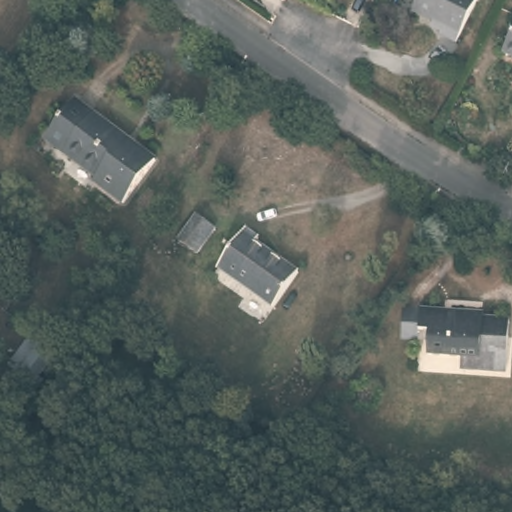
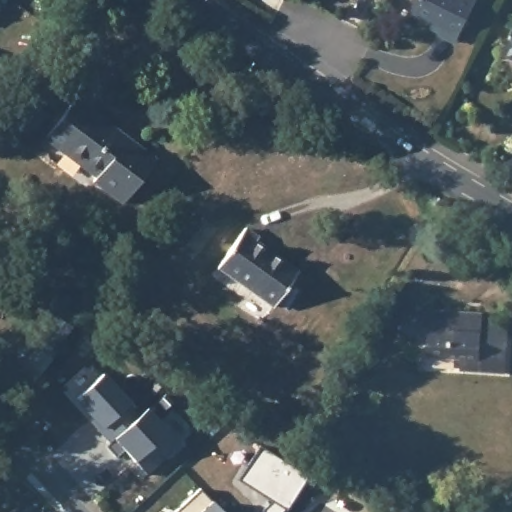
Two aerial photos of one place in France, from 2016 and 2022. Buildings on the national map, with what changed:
unchanged [(454,43),(437,34),(441,25),(411,9),(416,0),(476,0),(477,0),(454,43)]
unchanged [(498,51),(512,27),(512,59),(498,51)]
unchanged [(160,160),(127,204),(95,181),(97,177),(44,140),(75,99),(160,160)]
unchanged [(198,256),(177,241),(196,215),(216,228),(198,256)]
unchanged [(273,306),(217,268),(242,229),(255,239),(252,243),(295,269),(273,306)]
unchanged [(480,313),(480,320),(507,324),(498,378),(457,369),(460,355),(425,350),(427,326),(418,325),(417,331),(402,328),(407,301),(422,304),(422,302),(480,313)]
unchanged [(53,359),(36,383),(16,371),(31,351),(25,346),(36,331),(42,337),(57,316),(72,325),(53,359)]
new [(96,376),(134,417),(102,444),(92,432),(96,428),(70,399),(96,376)]
new [(102,444),(134,417),(141,410),(174,446),(141,476),(118,452),(110,459),(99,448),(102,444)]
new [(268,496),(235,474),(257,439),(306,471),(283,506),(282,504),(274,512),(252,512),(258,505),(268,496)]
new [(201,489),(210,502),(219,512),(175,512),(201,489)]
new [(27,512),(15,512),(22,506),(27,512)]

